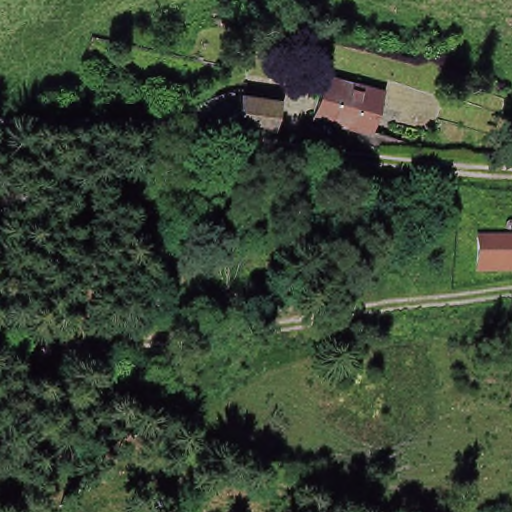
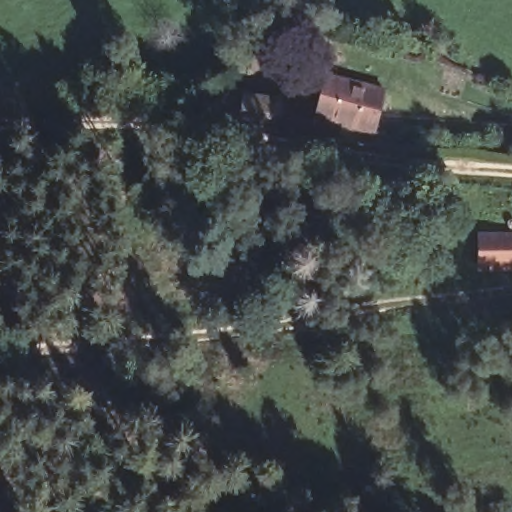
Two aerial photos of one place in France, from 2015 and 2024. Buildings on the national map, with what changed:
unchanged [(374,132),(313,115),(324,71),(385,86),(374,132)]
unchanged [(279,139),(238,125),(208,136),(193,109),(232,89),(283,97),(279,139)]
unchanged [(477,235),(512,236),(512,273),(477,273),(477,235)]

